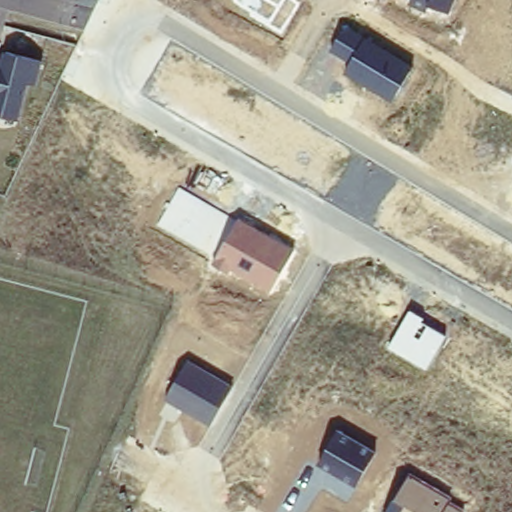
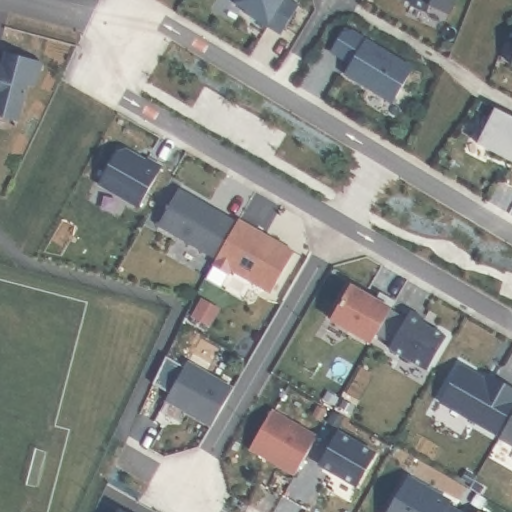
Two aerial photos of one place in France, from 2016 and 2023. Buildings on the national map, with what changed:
new [(237,0),(290,0),(296,3),(277,33),(251,17),(252,15),(235,4),(237,0)]
unchanged [(451,13),(431,4),(427,12),(408,3),(410,0),(455,0),(451,13)]
new [(246,10),(252,15),(251,17),(244,13),(246,10)]
unchanged [(391,102),(345,73),(351,61),(332,49),(346,23),(415,65),(391,102)]
unchanged [(4,63),(7,52),(40,59),(35,85),(26,82),(16,119),(0,116),(0,62),(4,63)]
new [(512,65),(511,64),(512,61),(512,65)]
new [(496,108),(512,116),(512,161),(477,143),(496,108)]
new [(141,206),(100,183),(119,151),(126,149),(147,161),(149,159),(162,167),(141,206)]
new [(160,225),(181,188),(237,219),(216,259),(160,225)]
unchanged [(272,290),(237,272),(233,269),(231,275),(213,265),(237,219),(295,250),(272,290)]
new [(332,317),(351,284),(376,298),(380,291),(396,300),(372,340),(332,317)]
unchanged [(427,369),(389,344),(410,308),(427,317),(424,322),(446,332),(427,369)]
unchanged [(211,424),(165,398),(185,359),(232,386),(211,424)]
new [(487,369),(494,373),(512,383),(512,412),(500,434),(439,399),(461,361),(485,375),(491,378),(485,374),(487,369)]
new [(344,398),(353,403),(350,410),(341,404),(344,398)]
new [(251,446),(272,408),(318,434),(297,472),(251,446)]
new [(512,442),(499,434),(512,412),(512,442)]
unchanged [(356,485),(317,463),(338,427),(377,449),(356,485)]
unchanged [(451,497),(447,502),(463,512),(387,512),(409,472),(451,497)]
new [(128,512),(113,512),(117,505),(128,512)]
new [(483,512),(476,512),(477,509),(483,512)]

